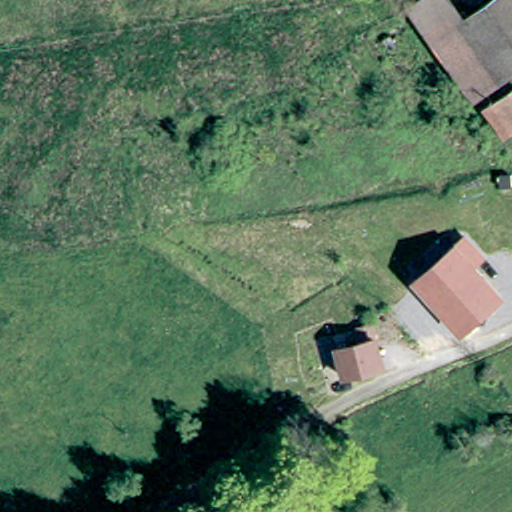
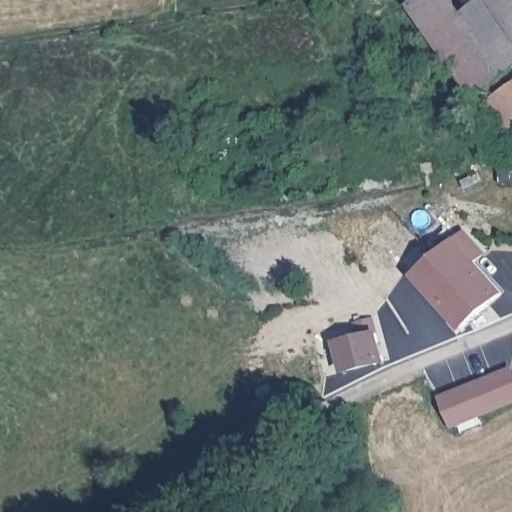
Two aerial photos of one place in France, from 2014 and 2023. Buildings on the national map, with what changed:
unchanged [(469,17),(507,74),(487,90),(476,98),(412,7),(421,0),(457,0),(469,17)]
unchanged [(469,17),(496,0),(512,0),(512,77),(511,78),(507,74),(469,17)]
unchanged [(504,97),(512,90),(512,105),(504,97)]
unchanged [(417,282),(464,240),(482,259),(472,267),(500,298),(461,331),(417,282)]
unchanged [(338,346),(361,341),(359,328),(373,326),(381,367),(343,373),(338,346)]
new [(452,429),(440,397),(512,367),(512,405),(452,429)]

